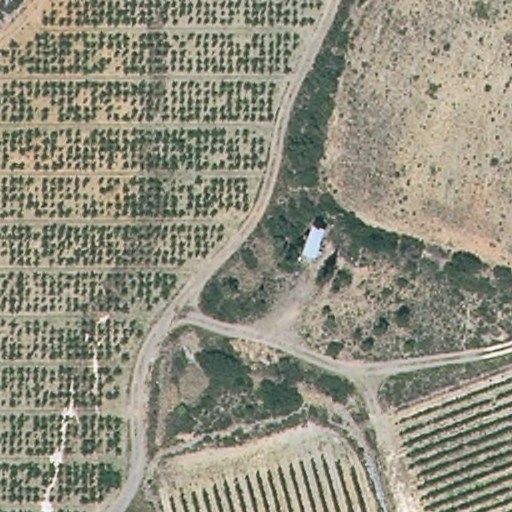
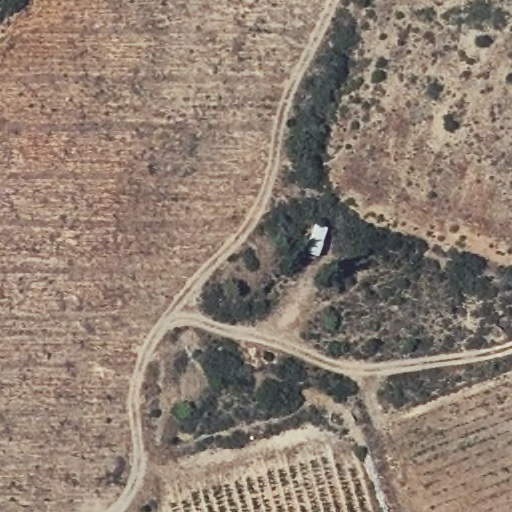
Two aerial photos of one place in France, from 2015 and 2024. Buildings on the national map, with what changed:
unchanged [(298,248),(308,225),(324,231),(315,255),(298,248)]

